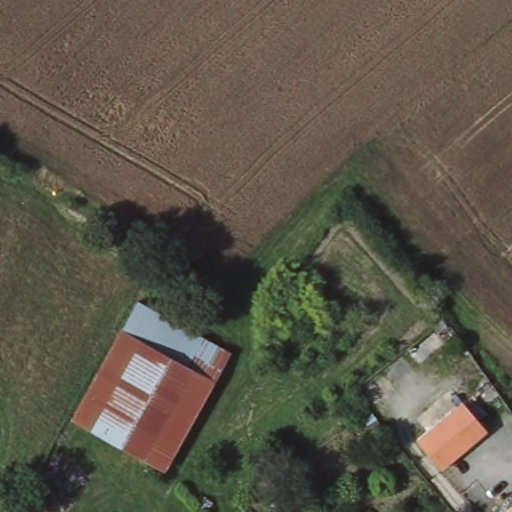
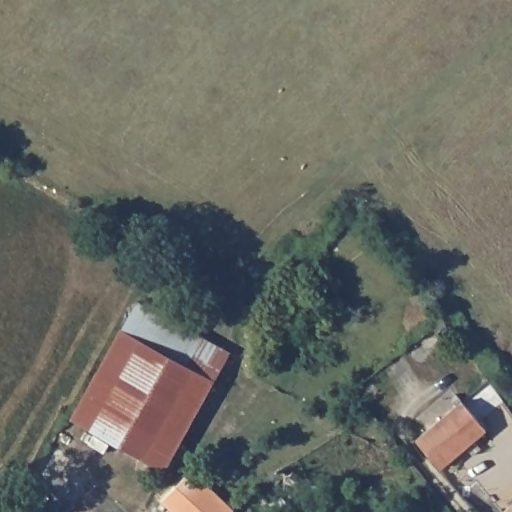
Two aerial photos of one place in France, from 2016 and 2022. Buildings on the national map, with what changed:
unchanged [(229,349),(210,384),(161,356),(120,335),(137,300),(229,349)]
unchanged [(72,422),(120,335),(161,356),(210,384),(162,470),(106,440),(72,422)]
unchanged [(487,435),(442,468),(420,440),(466,405),(487,435)]
new [(162,501),(192,469),(234,508),(231,512),(174,512),(162,501)]
unchanged [(512,508),(512,512),(507,512),(512,508)]

